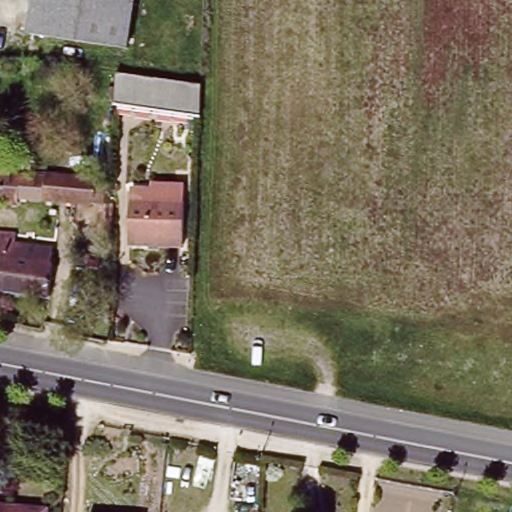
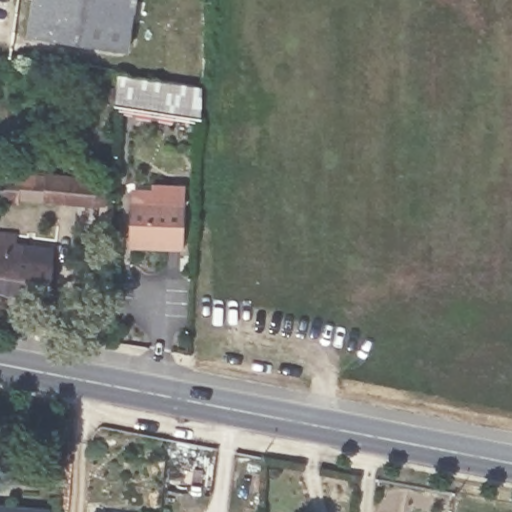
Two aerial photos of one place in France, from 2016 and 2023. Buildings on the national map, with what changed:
unchanged [(27,30),(33,0),(134,0),(127,48),(27,30)]
unchanged [(120,104),(122,73),(208,86),(207,117),(120,104)]
unchanged [(20,196),(20,204),(0,204),(0,167),(111,173),(110,202),(20,196)]
unchanged [(150,185),(150,178),(184,181),(183,247),(129,244),(130,185),(150,185)]
unchanged [(0,294),(0,237),(11,238),(10,246),(52,253),(48,265),(43,301),(0,294)]
unchanged [(48,509),(48,512),(0,512),(0,504),(48,509)]

